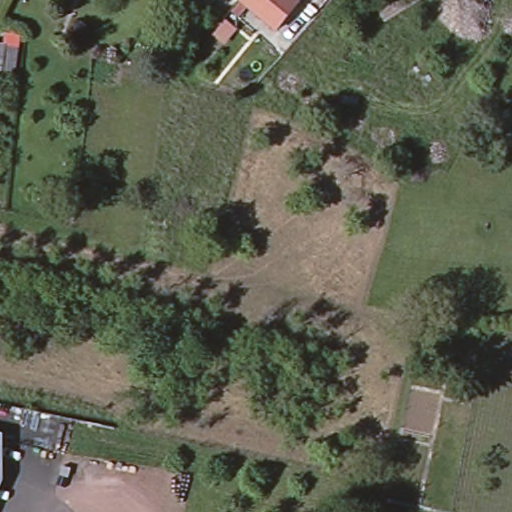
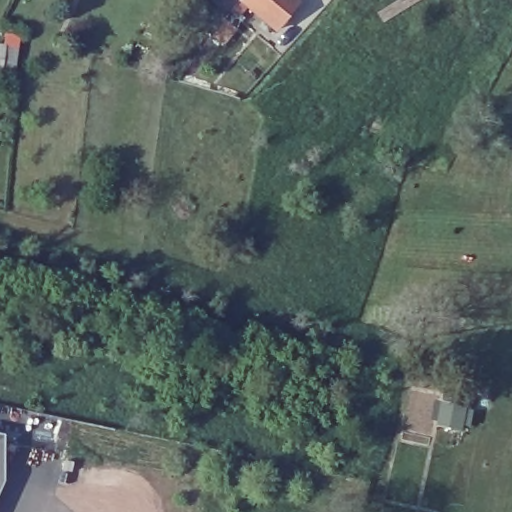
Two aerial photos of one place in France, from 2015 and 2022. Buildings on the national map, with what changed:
unchanged [(234,0),(238,0),(236,2),(234,0)]
unchanged [(286,0),(293,7),(271,32),(236,2),(238,0),(286,0)]

